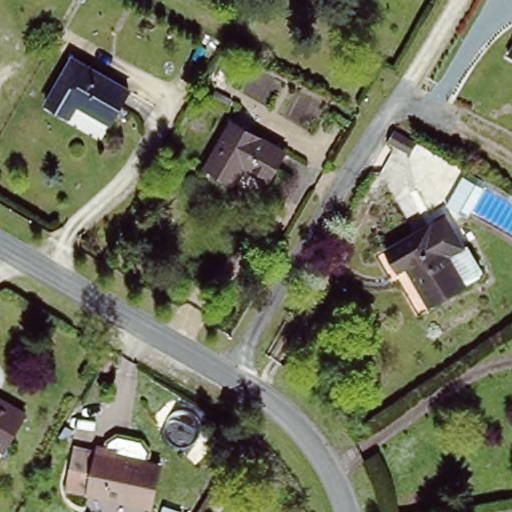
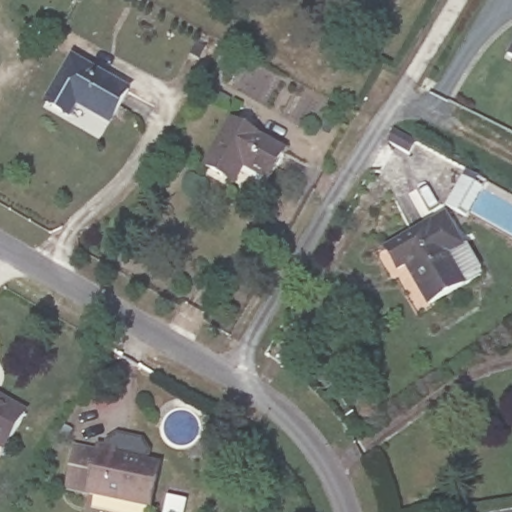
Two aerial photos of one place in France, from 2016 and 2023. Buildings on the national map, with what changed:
unchanged [(512,39),(512,60),(503,55),(512,39)]
unchanged [(133,94),(120,115),(113,126),(81,107),(73,120),(50,105),(76,60),(133,94)]
unchanged [(223,177),(205,166),(231,122),(283,154),(274,171),(268,180),(245,165),(234,184),(223,177)]
unchanged [(385,249),(430,227),(448,216),(465,248),(448,258),(465,289),(429,307),(410,268),(397,271),(385,249)]
unchanged [(30,420),(7,455),(0,451),(0,402),(30,420)]
unchanged [(67,485),(75,450),(102,455),(105,442),(115,437),(138,441),(147,452),(145,467),(158,469),(151,507),(87,495),(67,492),(67,485)]

